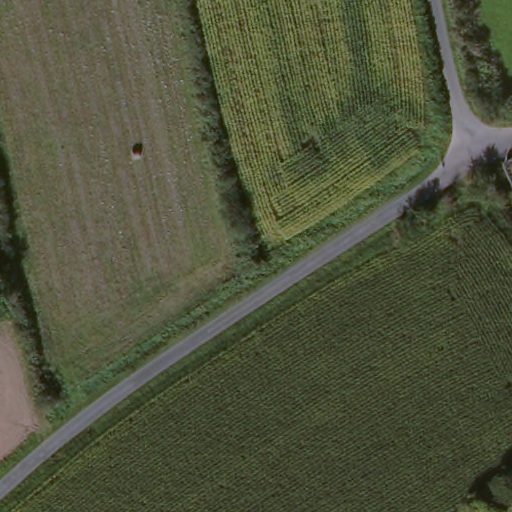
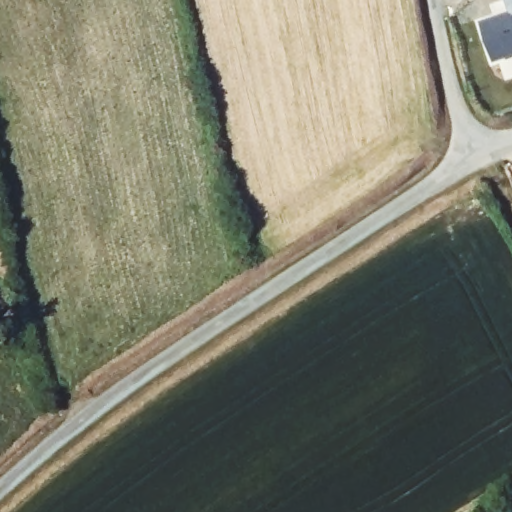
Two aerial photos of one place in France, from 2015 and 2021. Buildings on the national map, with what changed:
new [(511,12),(506,0),(512,0),(512,51),(493,57),(481,22),(511,12)]

